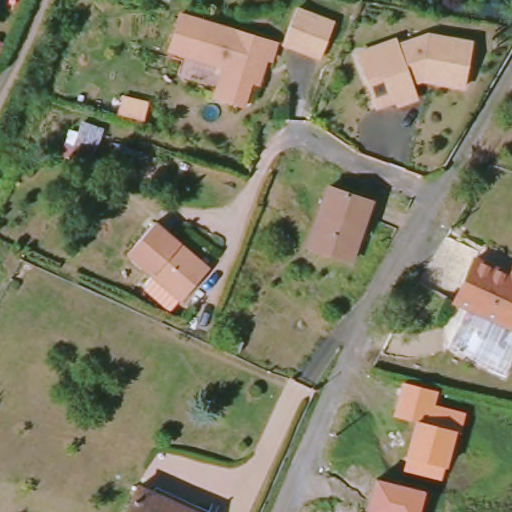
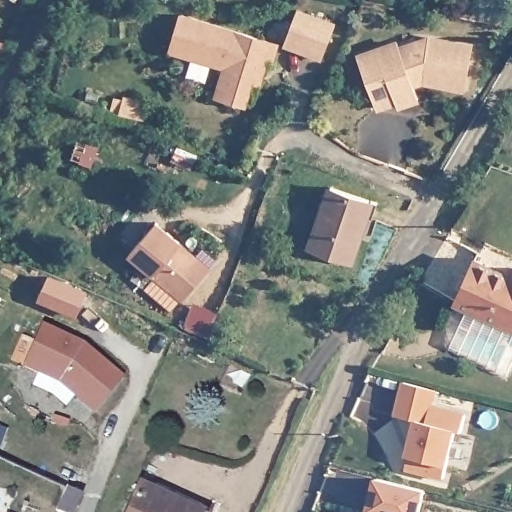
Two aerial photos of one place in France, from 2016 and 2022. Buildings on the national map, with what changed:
unchanged [(250,83),(247,82),(237,107),(208,95),(220,66),(168,45),(182,9),(275,46),(269,63),(264,61),(254,85),(250,83)]
unchanged [(335,24),(320,59),(283,43),(297,9),(335,24)]
unchanged [(398,104),(396,99),(376,106),(358,54),(398,40),(400,46),(416,40),(431,35),(474,44),(465,88),(422,79),(414,81),(419,97),(398,104)]
unchanged [(304,246),(311,227),(325,187),(336,191),(373,203),(366,220),(361,219),(355,236),(359,238),(350,262),(315,249),(310,248),(304,246)]
unchanged [(125,251),(155,221),(178,243),(205,269),(201,274),(177,301),(125,251)]
unchanged [(511,263),(512,263),(512,327),(450,304),(467,258),(506,273),(511,263)]
new [(95,411),(55,381),(24,369),(41,324),(86,344),(122,376),(95,411)]
unchanged [(440,393),(436,404),(465,414),(460,434),(458,433),(450,468),(447,468),(442,485),(401,471),(414,423),(393,417),(402,384),(440,393)]
unchanged [(421,512),(365,512),(374,477),(425,493),(421,512)]
unchanged [(122,512),(133,488),(190,512),(122,512)]

